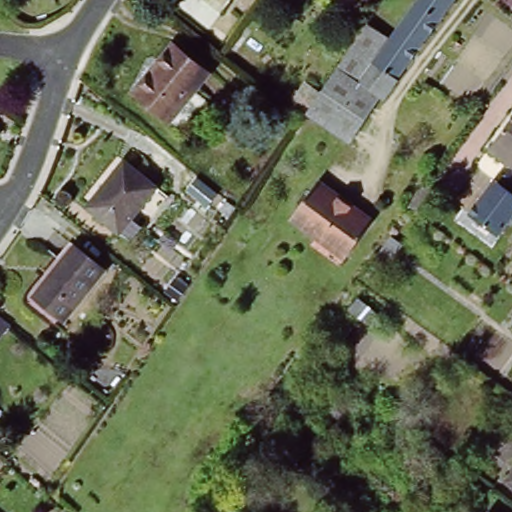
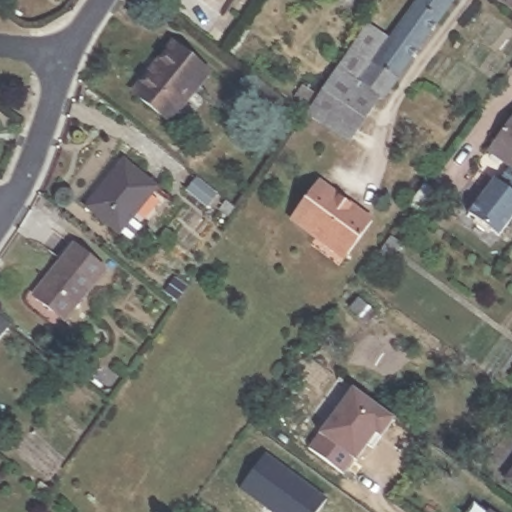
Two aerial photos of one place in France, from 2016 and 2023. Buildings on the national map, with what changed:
unchanged [(380,94),(357,79),(388,37),(415,0),(452,0),(382,96),(380,94)]
unchanged [(305,112),(314,99),(328,78),(367,21),(388,37),(357,79),(380,94),(355,128),(346,140),(305,112)]
unchanged [(136,92),(160,62),(156,59),(172,40),(209,70),(168,119),(136,92)]
unchanged [(487,154),(512,120),(512,171),(487,154)]
unchanged [(128,232),(118,224),(117,225),(84,199),(104,175),(110,167),(122,152),(155,180),(129,211),(140,220),(128,232)]
unchanged [(512,171),(512,217),(499,234),(467,213),(494,178),(498,180),(507,167),(512,171)]
unchanged [(312,235),(289,217),(317,180),(370,220),(345,254),(342,257),(312,235)]
unchanged [(438,191),(422,212),(409,202),(425,181),(438,191)]
unchanged [(379,250),(390,235),(402,244),(390,259),(379,250)]
unchanged [(30,294),(72,243),(102,268),(61,319),(30,294)]
unchanged [(349,305),(357,295),(372,310),(365,319),(349,305)]
unchanged [(0,316),(8,322),(0,332),(0,316)]
new [(380,438),(374,434),(355,461),(354,460),(343,473),(310,448),(320,437),(317,435),(350,387),(395,417),(380,438)]
new [(273,512),(240,489),(265,452),(328,498),(318,512),(273,512)]
unchanged [(506,476),(512,468),(512,481),(506,476)]
unchanged [(488,512),(481,512),(484,508),(488,512)]

